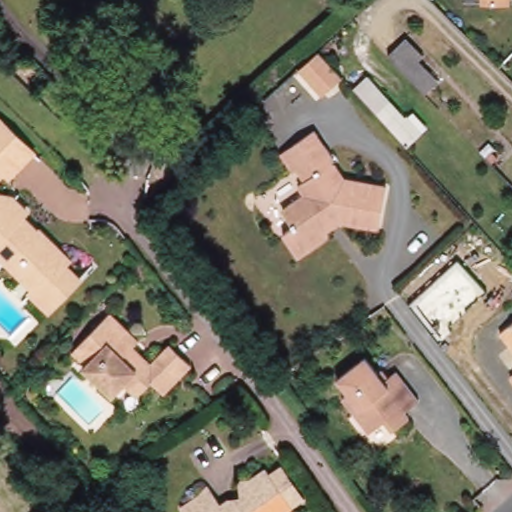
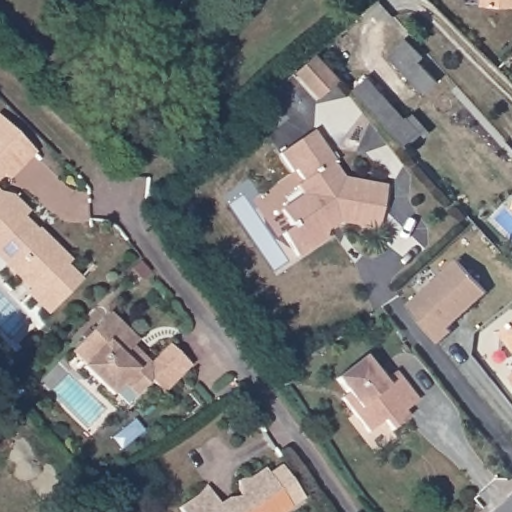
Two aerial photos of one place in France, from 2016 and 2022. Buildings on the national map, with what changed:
unchanged [(509,2),(481,2),(481,0),(509,0),(509,2)]
unchanged [(425,92),(388,54),(400,42),(406,37),(424,56),(418,61),(437,81),(425,92)]
unchanged [(334,69),(342,77),(342,78),(321,96),(297,70),(317,52),(334,69)]
unchanged [(367,77),(405,118),(407,116),(422,134),(408,147),(394,132),(355,87),(367,77)]
unchanged [(33,154),(32,155),(8,179),(4,176),(0,180),(0,121),(33,154)]
unchanged [(301,184),(294,172),(291,175),(279,156),(314,132),(335,162),(331,165),(341,181),(385,189),(378,231),(334,224),(332,221),(325,226),(327,228),(323,241),(297,258),(282,237),(292,231),(280,212),(301,199),(294,189),(301,184)]
unchanged [(491,153),(496,159),(490,164),(485,158),(491,153)]
unchanged [(21,217),(37,233),(40,231),(69,260),(65,266),(79,282),(48,315),(27,296),(32,291),(0,260),(0,195),(13,199),(26,212),(21,217)]
new [(458,261),(488,293),(449,328),(452,332),(438,345),(408,306),(458,261)]
unchanged [(132,348),(150,366),(170,347),(190,367),(162,395),(150,383),(137,397),(124,383),(112,396),(84,367),(87,365),(73,352),(110,313),(139,342),(132,348)]
unchanged [(512,352),(500,337),(512,328),(512,352)]
unchanged [(365,361),(383,382),(396,373),(419,403),(406,413),(409,420),(389,433),(381,425),(366,435),(342,403),(347,398),(335,382),(365,361)]
unchanged [(512,379),(512,385),(509,382),(512,379)]
unchanged [(265,470),(290,509),(291,510),(289,512),(181,512),(179,509),(199,496),(206,486),(218,506),(227,501),(229,500),(238,498),(238,481),(249,481),(265,470)]

